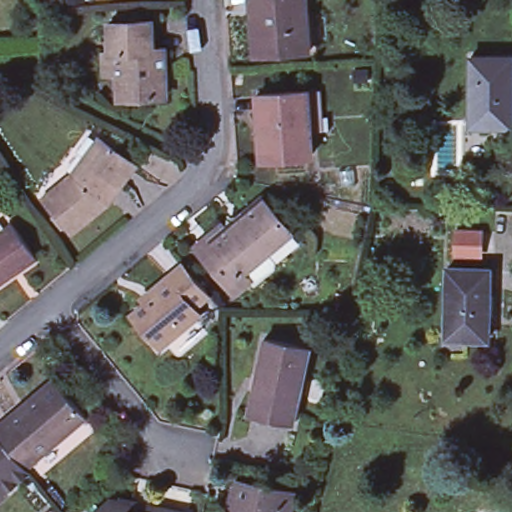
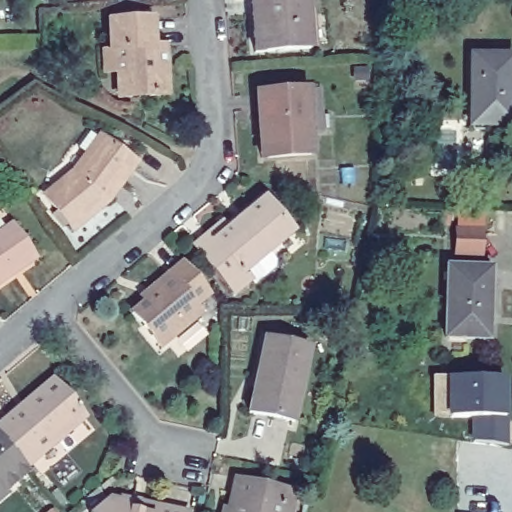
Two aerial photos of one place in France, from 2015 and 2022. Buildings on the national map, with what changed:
unchanged [(290,50),(248,52),(246,13),(255,12),(254,0),(301,0),(304,49),(290,50)]
unchanged [(149,47),(159,46),(162,95),(115,97),(113,52),(108,52),(105,20),(148,17),(149,47)]
unchanged [(471,126),(473,56),(512,57),(512,104),(512,126),(471,126)]
unchanged [(309,155),(265,157),(264,137),(258,137),(256,93),(307,91),(309,155)]
unchanged [(132,164),(105,198),(69,230),(39,195),(73,167),(83,154),(70,145),(83,129),(95,139),(96,136),(132,164)]
unchanged [(268,275),(249,291),(244,285),(229,297),(191,251),(218,229),(221,234),(257,203),(284,236),(261,256),(269,265),(268,275)]
unchanged [(13,224),(36,257),(14,273),(15,274),(0,285),(0,233),(13,224)]
unchanged [(193,308),(198,315),(158,348),(131,315),(154,295),(150,290),(183,263),(208,295),(193,308)]
unchanged [(487,335),(445,335),(447,263),(489,265),(487,335)]
unchanged [(309,347),(291,423),(248,413),(265,337),(309,347)]
new [(503,418),(506,418),(506,447),(473,443),(473,418),(448,418),(438,418),(438,378),(448,378),(503,378),(503,418)]
unchanged [(7,499),(0,505),(0,428),(5,423),(8,426),(24,412),(21,410),(53,384),(85,422),(25,473),(27,476),(4,495),(7,499)]
unchanged [(229,512),(227,511),(236,478),(292,492),(288,512),(229,512)]
unchanged [(134,505),(133,511),(135,512),(97,512),(111,500),(134,505)]
unchanged [(158,512),(159,506),(186,512),(158,512)]
unchanged [(53,512),(49,512),(51,510),(53,512)]

